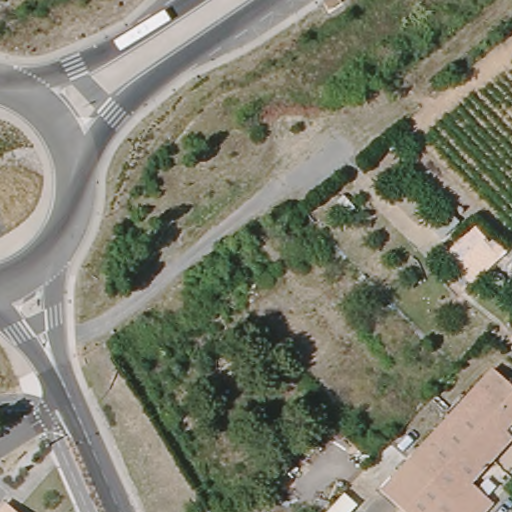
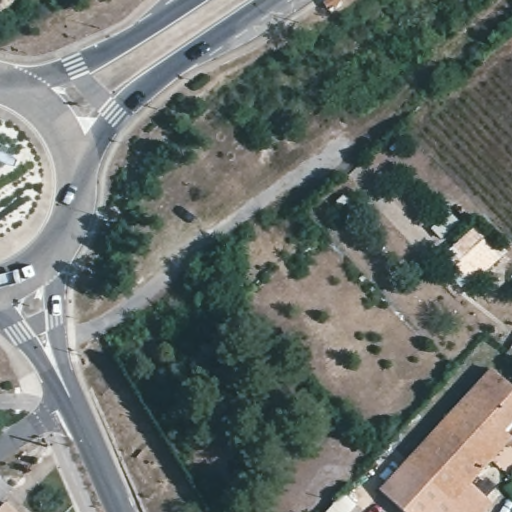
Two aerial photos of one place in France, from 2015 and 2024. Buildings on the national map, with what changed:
unchanged [(125,208),(134,213),(127,227),(118,223),(125,208)]
unchanged [(472,231),(482,241),(480,243),(488,252),(494,247),(502,257),(467,290),(440,261),(472,231)]
unchanged [(512,345),(512,359),(505,354),(512,345)]
unchanged [(512,444),(471,488),(494,508),(490,512),(398,512),(382,497),(493,376),(512,393),(512,444)]
unchanged [(8,512),(0,512),(0,510),(2,507),(8,512)]

